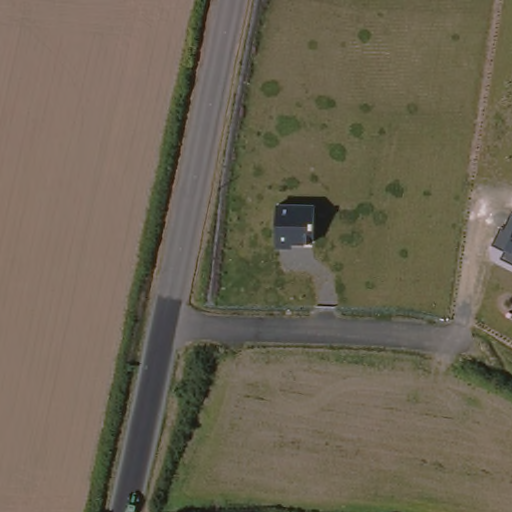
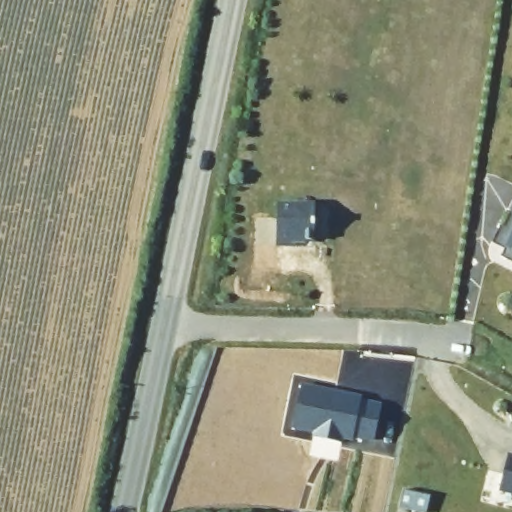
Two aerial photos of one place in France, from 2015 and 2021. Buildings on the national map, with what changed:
unchanged [(332,212),(333,212),(332,248),(331,248),(311,247),(311,252),(295,252),(296,210),(332,212)]
unchanged [(504,249),(492,242),(501,225),(503,226),(511,210),(512,211),(512,262),(501,256),(504,249)]
new [(354,435),(352,440),(341,438),(340,442),(315,436),(316,431),(294,425),(302,386),(362,398),(361,403),(380,406),(373,440),(354,435)]
new [(512,455),(512,494),(500,492),(508,454),(512,455)]

